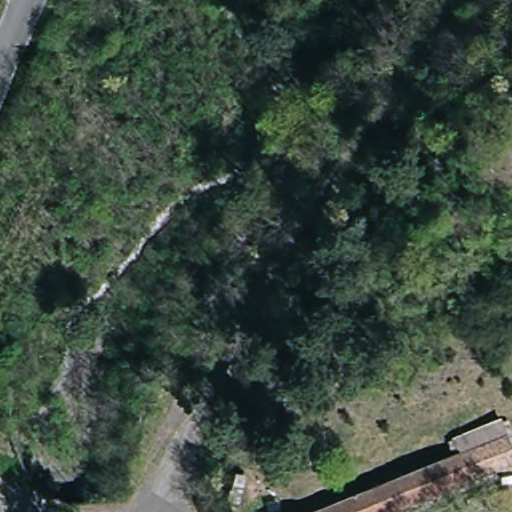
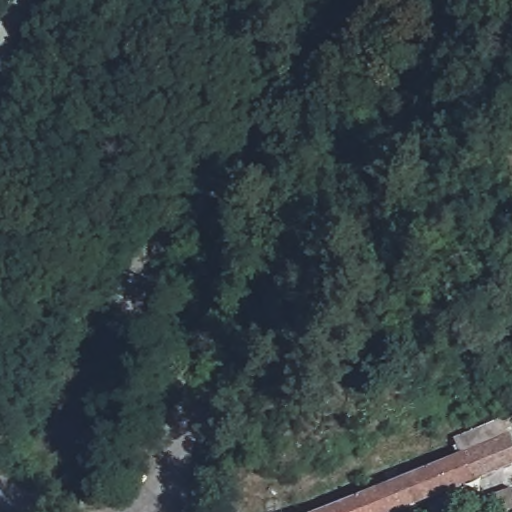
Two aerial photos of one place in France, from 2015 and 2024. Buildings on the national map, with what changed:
unchanged [(0,382),(0,346),(7,349),(5,360),(5,383),(0,382)]
unchanged [(511,435),(512,435),(512,464),(392,512),(323,512),(464,455),(457,438),(505,418),(506,420),(511,419),(512,421),(512,426),(509,428),(511,435)]

